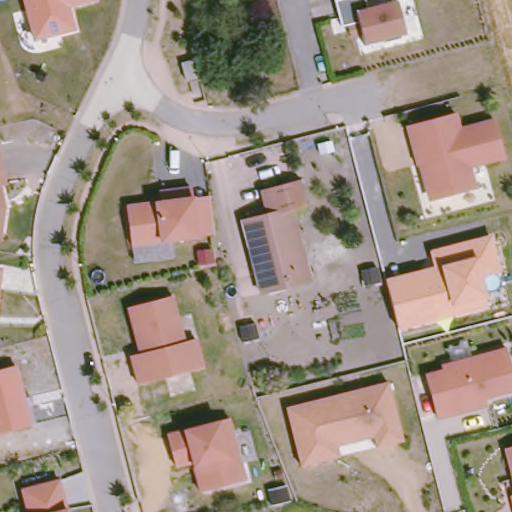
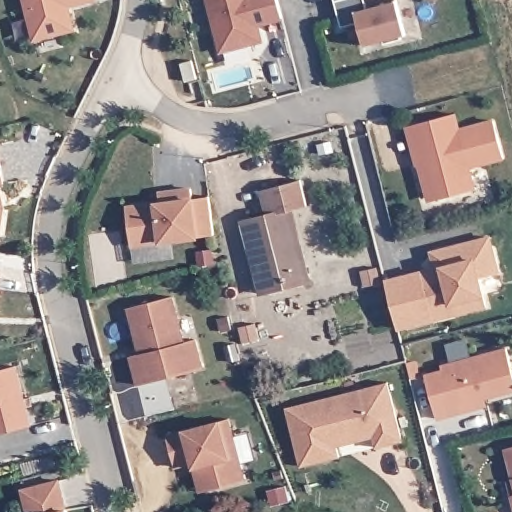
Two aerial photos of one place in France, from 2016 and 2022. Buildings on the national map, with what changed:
unchanged [(91,0),(70,5),(76,29),(33,41),(23,0),(91,0)]
new [(206,0),(277,0),(282,21),(260,27),(263,43),(220,54),(206,0)]
unchanged [(403,36),(404,41),(387,45),(386,40),(367,45),(361,24),(349,26),(345,28),(337,1),(337,0),(367,0),(370,11),(400,3),(407,35),(403,36)]
unchanged [(200,56),(205,76),(194,78),(189,60),(200,56)]
unchanged [(451,114),(456,130),(461,129),(491,121),(501,158),(470,166),(466,168),(472,190),(432,200),(426,176),(430,169),(427,162),(414,166),(404,126),(451,114)]
unchanged [(0,185),(0,171),(2,184),(0,185)]
unchanged [(263,295),(257,265),(263,264),(252,220),(268,216),(262,192),(303,182),(308,207),(294,211),(312,283),(263,295)]
unchanged [(207,199),(209,216),(212,237),(195,239),(137,246),(130,247),(126,208),(127,208),(160,204),(158,194),(171,193),(189,191),(191,201),(207,199)]
unchanged [(0,202),(0,196),(1,202),(0,202)]
unchanged [(2,238),(0,237),(0,212),(6,213),(2,238)]
unchanged [(386,279),(433,267),(430,252),(491,235),(500,269),(480,274),(485,296),(487,307),(398,331),(386,279)]
unchanged [(0,265),(2,265),(0,276),(0,265)]
unchanged [(157,301),(173,297),(185,343),(197,340),(204,368),(177,375),(140,385),(131,358),(152,351),(150,342),(144,344),(134,307),(157,301)]
unchanged [(457,411),(447,414),(438,416),(427,372),(435,370),(444,368),(443,363),(509,347),(512,360),(512,389),(487,396),(489,404),(457,411)]
unchanged [(31,424),(0,433),(0,370),(17,366),(31,424)]
unchanged [(337,447),(340,457),(302,467),(287,409),(357,391),(384,384),(388,383),(403,441),(399,442),(377,448),(374,438),(370,439),(337,447)]
unchanged [(191,429),(231,418),(247,478),(210,488),(206,471),(202,472),(198,473),(195,461),(177,466),(177,464),(170,434),(191,429)]
unchanged [(506,447),(512,446),(512,471),(506,447)]
unchanged [(21,493),(57,484),(65,512),(26,512),(21,493)]

